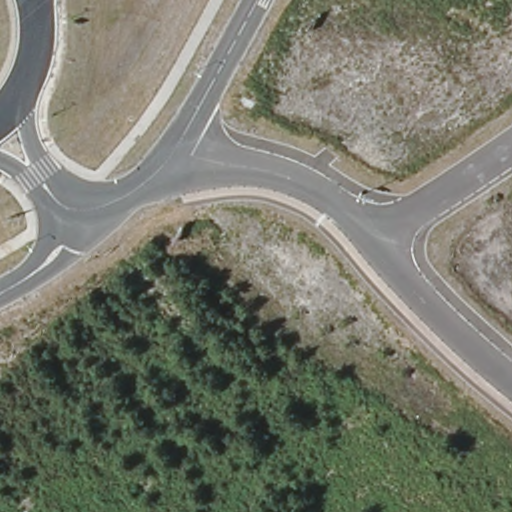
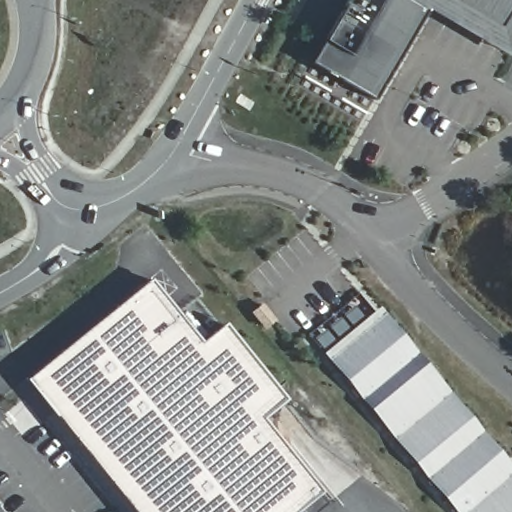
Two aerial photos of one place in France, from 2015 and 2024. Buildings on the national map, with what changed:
new [(424,10),(373,99),(308,62),(344,0),(512,0),(512,48),(507,56),(424,10)]
new [(136,310),(127,298),(151,278),(202,342),(225,323),(280,390),(287,399),(263,418),(331,502),(320,512),(304,512),(300,508),(296,512),(142,512),(40,388),(136,310)]
new [(127,298),(136,310),(40,388),(31,376),(124,300),(127,298)]
new [(275,318),(266,326),(253,312),(263,304),(275,318)]
new [(384,311),(512,465),(512,512),(455,512),(326,358),(384,311)]

